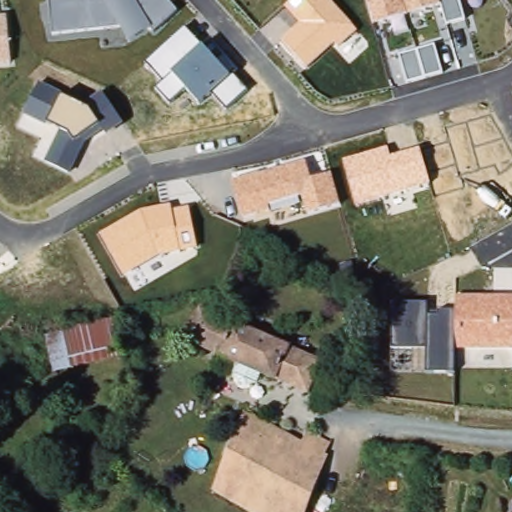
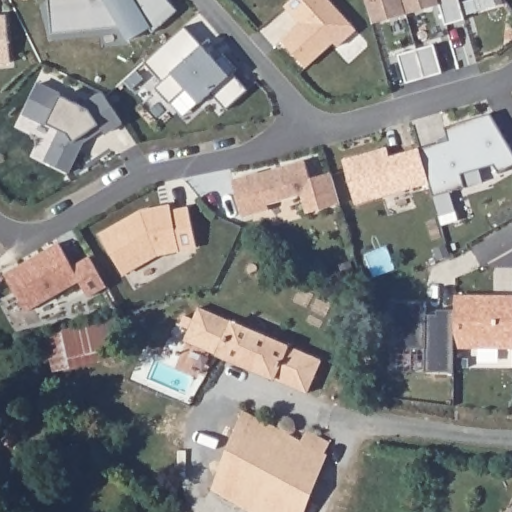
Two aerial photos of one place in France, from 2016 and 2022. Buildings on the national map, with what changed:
unchanged [(170,0),(179,10),(153,34),(151,28),(130,41),(121,26),(53,34),(49,0),(170,0)]
unchanged [(331,0),(357,30),(338,48),(334,43),(307,68),(281,39),(301,23),(286,5),(291,0),(331,0)]
unchanged [(460,0),(465,19),(447,24),(442,6),(375,23),(369,0),(460,0)]
unchanged [(12,61),(0,62),(0,17),(8,16),(12,61)]
unchanged [(156,89),(164,82),(146,61),(185,28),(202,46),(208,53),(217,45),(240,70),(234,74),(248,90),(227,110),(213,94),(200,104),(186,89),(170,104),(156,89)]
unchanged [(399,55),(436,45),(443,71),(407,82),(399,55)]
unchanged [(44,161),(59,131),(24,114),(39,82),(64,94),(63,97),(84,107),(105,93),(124,123),(106,135),(104,130),(85,141),(71,174),(44,161)]
new [(495,164),(461,174),(465,187),(434,195),(431,184),(422,148),(451,140),(447,126),(491,114),(512,152),(512,165),(502,172),(495,164)]
unchanged [(344,159),(388,146),(391,156),(422,148),(431,184),(357,204),(344,159)]
unchanged [(234,181),(306,161),(311,179),(332,173),(340,204),(308,213),(302,194),(298,196),(301,203),(271,212),(269,208),(243,218),(234,181)]
unchanged [(100,233),(141,210),(172,204),(173,212),(191,208),(198,249),(159,256),(124,275),(100,233)]
new [(59,244),(71,268),(90,258),(106,288),(87,299),(78,283),(25,313),(3,275),(59,244)]
unchanged [(394,303),(428,303),(428,314),(438,315),(438,310),(456,311),(456,295),(512,296),(512,349),(456,349),(455,371),(393,370),(393,348),(394,303)]
unchanged [(308,394),(261,374),(256,384),(247,386),(237,382),(233,373),(237,363),(195,345),(184,341),(199,308),(207,312),(322,362),(308,394)]
unchanged [(45,336),(119,317),(128,355),(53,373),(45,336)]
unchanged [(302,442),(307,432),(330,444),(325,455),(328,456),(306,512),(250,512),(212,493),(244,411),(302,442)]

